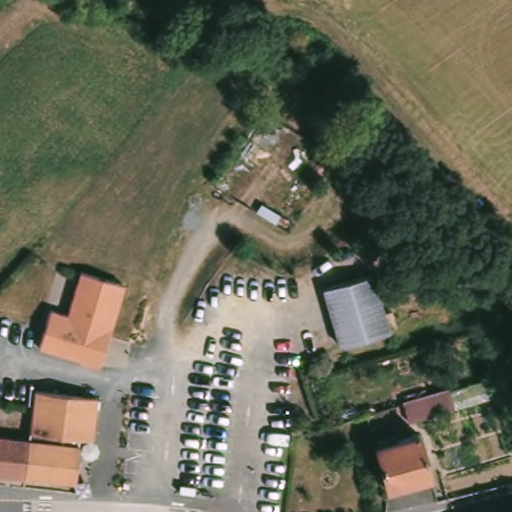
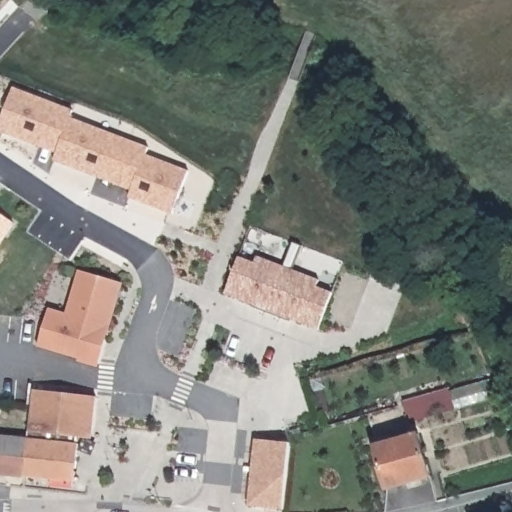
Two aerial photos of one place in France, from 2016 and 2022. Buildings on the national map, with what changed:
new [(72,118),(152,148),(149,156),(190,171),(174,215),(127,198),(130,190),(52,161),(56,153),(0,132),(0,126),(15,88),(76,110),(72,118)]
new [(255,261),(257,255),(322,280),(318,286),(334,293),(320,329),(226,295),(241,256),(255,261)]
unchanged [(80,270),(126,284),(105,363),(39,349),(51,309),(69,313),(80,270)]
demolished [(377,274),(392,332),(346,345),(330,286),(377,274)]
unchanged [(92,440),(79,439),(75,483),(0,476),(0,435),(29,438),(35,390),(97,397),(92,440)]
unchanged [(422,436),(433,482),(393,492),(381,446),(422,436)]
new [(250,505),(256,440),(290,444),(284,508),(250,505)]

